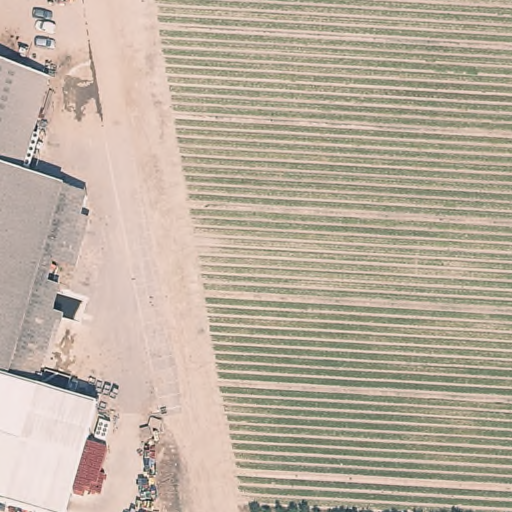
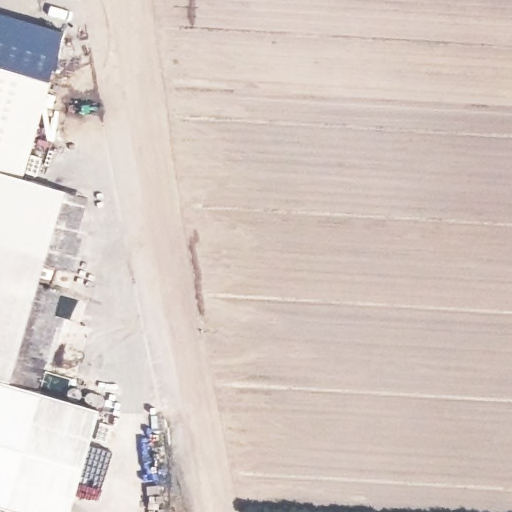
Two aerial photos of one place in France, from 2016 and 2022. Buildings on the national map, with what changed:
new [(48,79),(46,78),(0,68),(0,13),(62,31),(48,79)]
unchanged [(69,512),(12,512),(0,509),(0,68),(46,78),(18,181),(63,195),(8,385),(42,395),(97,410),(69,512)]
unchanged [(96,204),(42,395),(8,385),(63,195),(96,204)]

